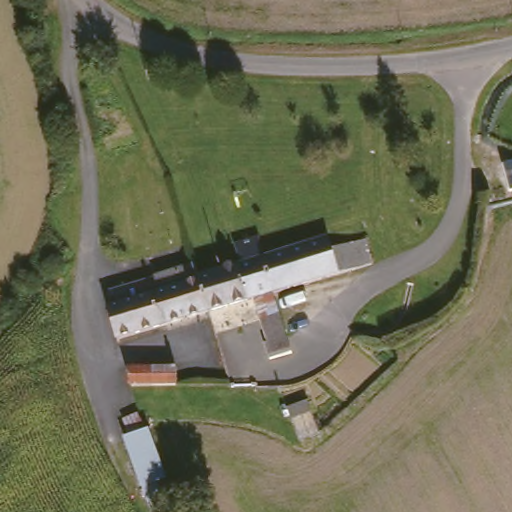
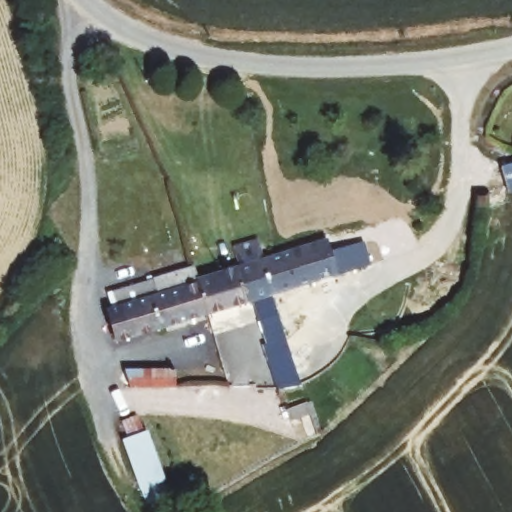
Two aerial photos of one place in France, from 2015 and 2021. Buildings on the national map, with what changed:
unchanged [(501,165),(512,162),(512,193),(508,193),(501,165)]
unchanged [(120,301),(114,287),(197,259),(203,276),(325,238),(331,250),(363,238),(373,266),(279,294),(292,351),(268,360),(256,302),(117,343),(105,306),(120,301)]
unchanged [(127,368),(177,367),(175,382),(129,385),(127,368)]
unchanged [(120,416),(146,408),(173,491),(148,499),(126,434),(120,416)]

